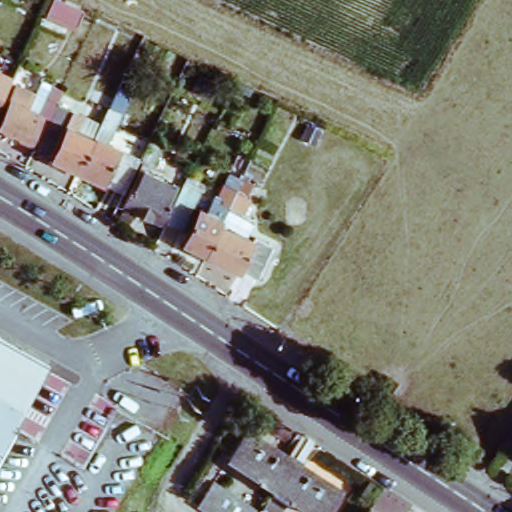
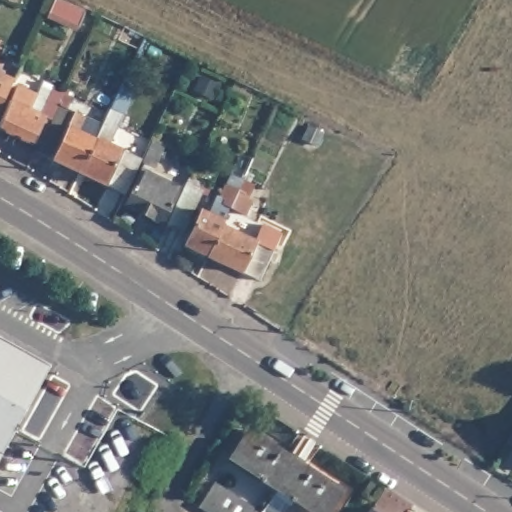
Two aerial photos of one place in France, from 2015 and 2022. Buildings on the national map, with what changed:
unchanged [(53,0),(59,0),(80,11),(76,26),(47,11),(53,0)]
unchanged [(0,133),(0,117),(15,88),(35,96),(44,77),(65,87),(35,151),(21,144),(0,133)]
unchanged [(38,156),(63,103),(85,113),(76,132),(95,141),(97,142),(93,144),(78,175),(38,156)]
unchanged [(114,131),(107,129),(105,133),(99,131),(105,119),(107,112),(120,118),(114,131)]
unchanged [(154,166),(143,161),(152,141),(163,146),(154,166)]
unchanged [(93,144),(97,142),(135,160),(137,161),(140,163),(123,197),(78,175),(93,144)]
unchanged [(205,207),(218,214),(226,197),(224,195),(240,158),(245,160),(250,148),(259,151),(247,175),(263,182),(256,197),(249,212),(233,205),(223,225),(210,255),(187,244),(205,207)]
unchanged [(150,167),(146,175),(176,189),(159,226),(122,209),(142,164),(150,167)]
unchanged [(188,175),(201,182),(177,232),(163,225),(188,175)]
unchanged [(258,237),(276,245),(261,279),(210,255),(223,225),(256,241),(258,237)]
unchanged [(0,454),(0,339),(48,365),(0,454)]
unchanged [(324,512),(311,512),(226,457),(245,427),(339,489),(324,512)]
unchanged [(512,435),(512,449),(505,445),(512,435)]
unchanged [(199,507),(216,482),(262,512),(207,512),(199,507)]
unchanged [(376,512),(370,512),(372,510),(376,512)]

